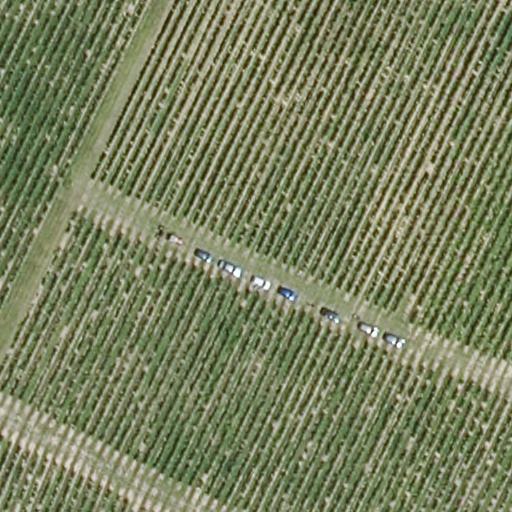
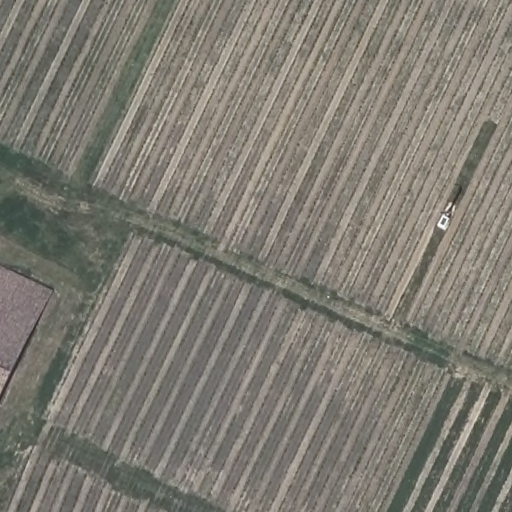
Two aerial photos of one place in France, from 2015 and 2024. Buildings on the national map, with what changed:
new [(52,291),(0,404),(0,266),(52,291)]

